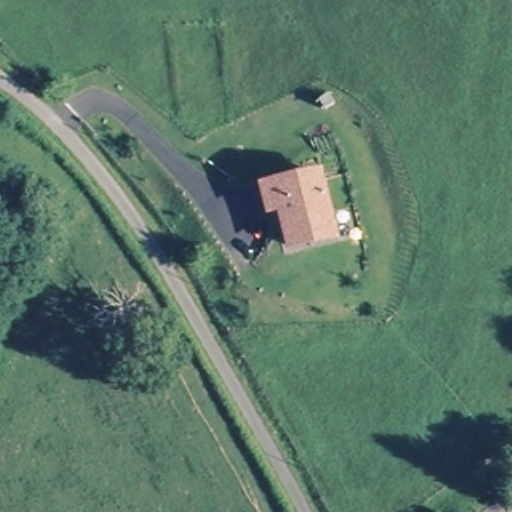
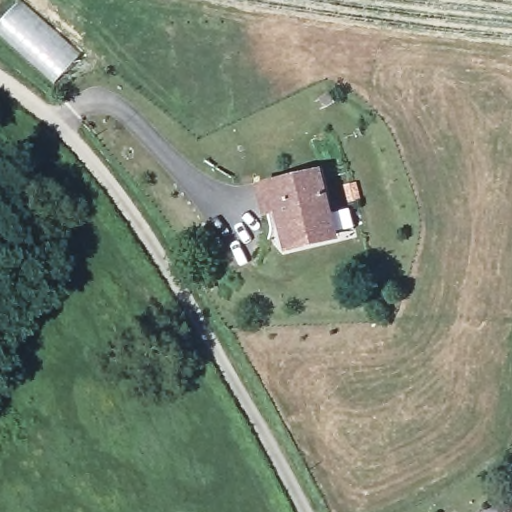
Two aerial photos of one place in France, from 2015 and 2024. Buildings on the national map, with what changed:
new [(19,3),(78,57),(52,86),(0,39),(0,24),(19,3)]
unchanged [(332,231),(287,242),(277,202),(267,204),(262,182),(272,180),(318,169),(332,231)]

